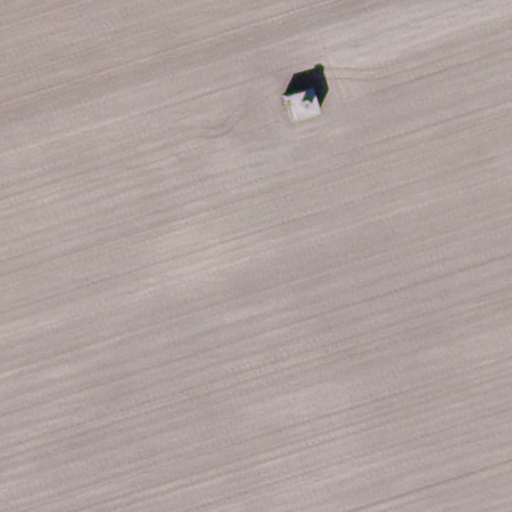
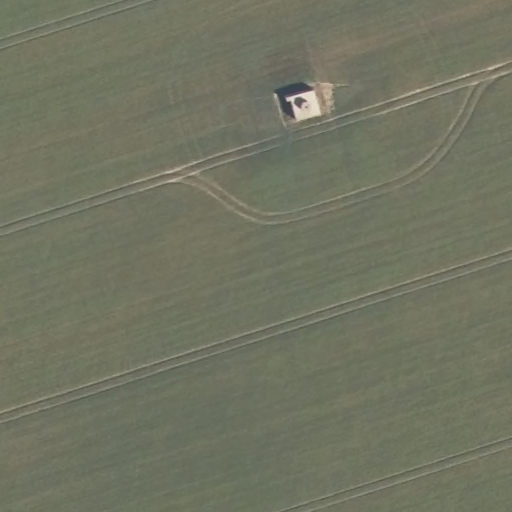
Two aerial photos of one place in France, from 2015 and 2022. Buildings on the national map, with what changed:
unchanged [(293,119),(286,96),(310,88),(316,113),(293,119)]

